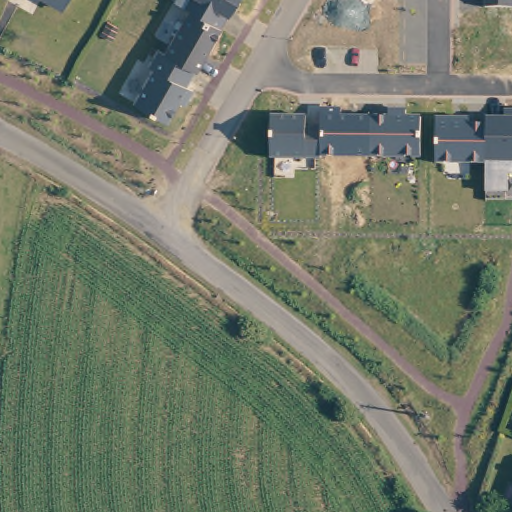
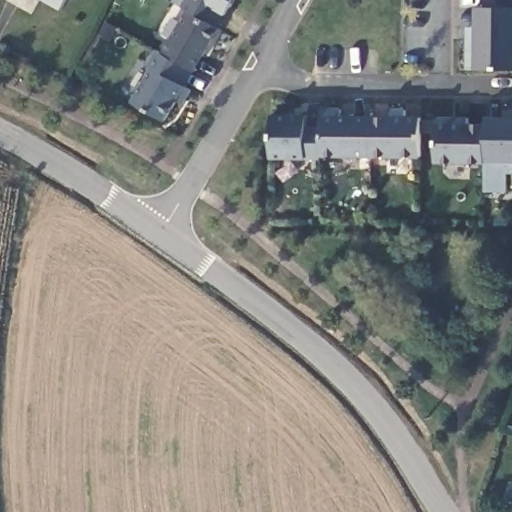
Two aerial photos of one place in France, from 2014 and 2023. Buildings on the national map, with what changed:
unchanged [(62,5),(54,0),(65,0),(62,5)]
unchanged [(186,85),(194,89),(185,106),(177,101),(166,123),(131,103),(154,70),(149,65),(157,50),(164,54),(190,10),(174,1),(175,0),(236,0),(186,85)]
unchanged [(486,9),(486,0),(512,0),(512,9),(486,9)]
new [(475,69),(466,70),(465,26),(476,26),(476,9),(486,9),(512,9),(512,70),(475,69)]
unchanged [(270,157),(269,115),(307,115),(307,107),(320,107),(321,160),(270,157)]
unchanged [(372,158),(372,116),(389,115),(388,109),(407,110),(407,117),(420,117),(420,159),(372,158)]
unchanged [(436,117),(470,117),(469,122),(486,122),(486,116),(505,117),(505,109),(512,109),(512,174),(508,174),(508,191),(486,192),(487,164),(436,164),(436,117)]

